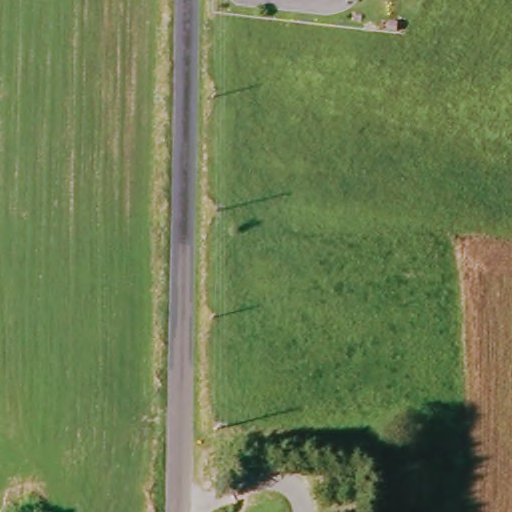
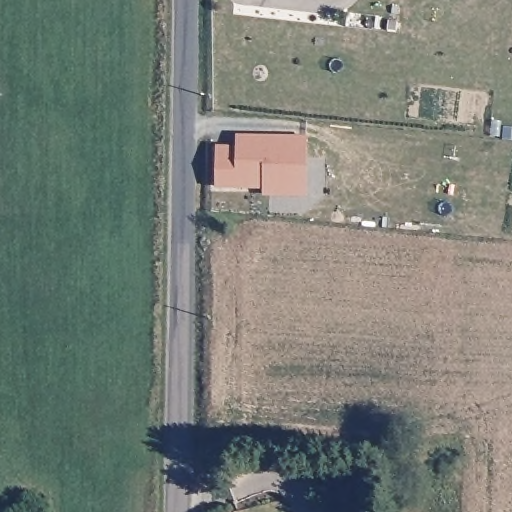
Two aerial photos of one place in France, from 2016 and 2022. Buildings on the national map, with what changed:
new [(264,189),(216,188),(217,147),(237,146),(237,135),(306,136),(306,195),(264,195),(264,189)]
demolished [(432,484),(435,457),(460,459),(458,486),(432,484)]

